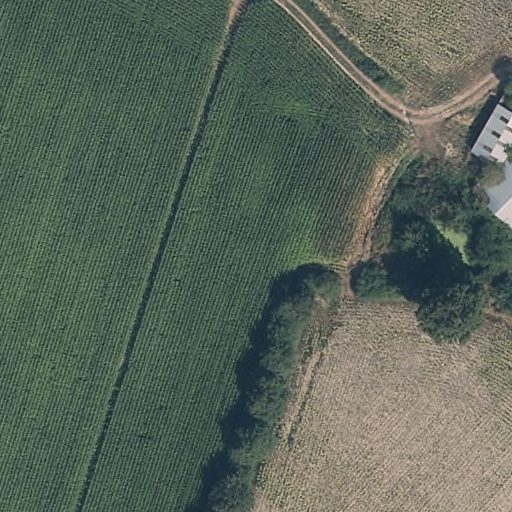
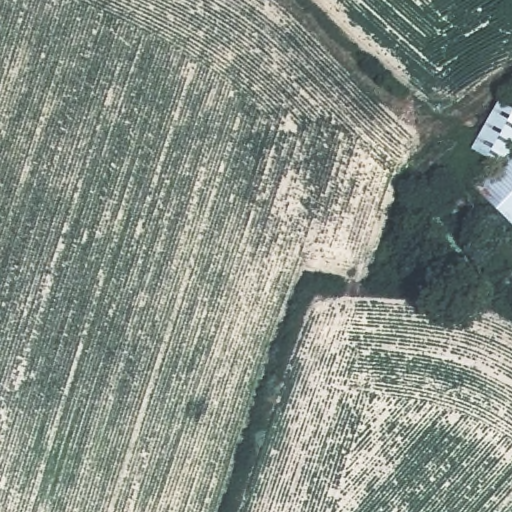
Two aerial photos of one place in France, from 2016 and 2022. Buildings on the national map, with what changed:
unchanged [(512,77),(512,148),(506,159),(512,165),(512,221),(470,184),(486,160),(466,144),(506,75),(512,77)]

